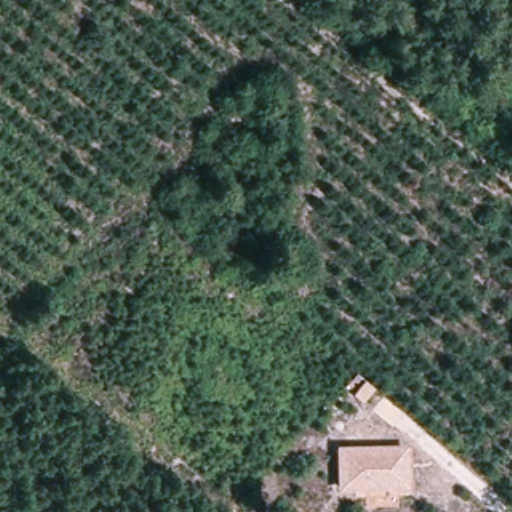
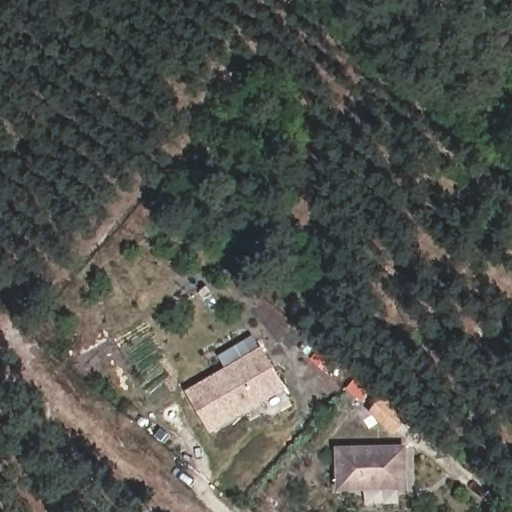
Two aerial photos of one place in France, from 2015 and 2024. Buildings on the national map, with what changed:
new [(185,390),(262,346),(287,388),(261,404),(261,406),(212,433),(185,390)]
unchanged [(407,444),(410,489),(336,490),(335,445),(407,444)]

